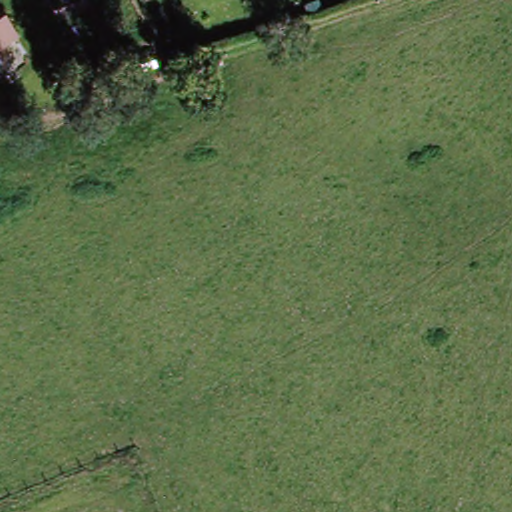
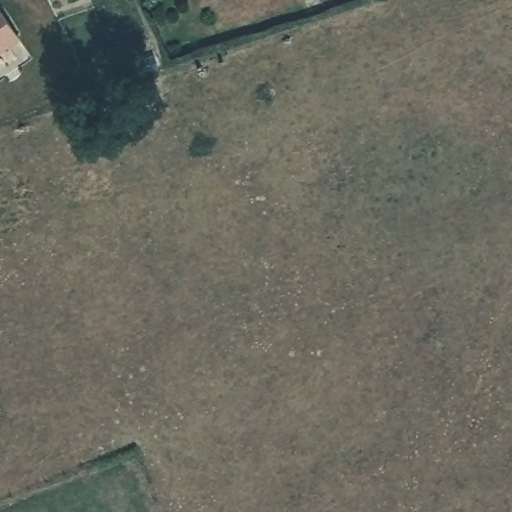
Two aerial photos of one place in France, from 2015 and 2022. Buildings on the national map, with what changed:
unchanged [(23,35),(0,52),(0,4),(23,35)]

